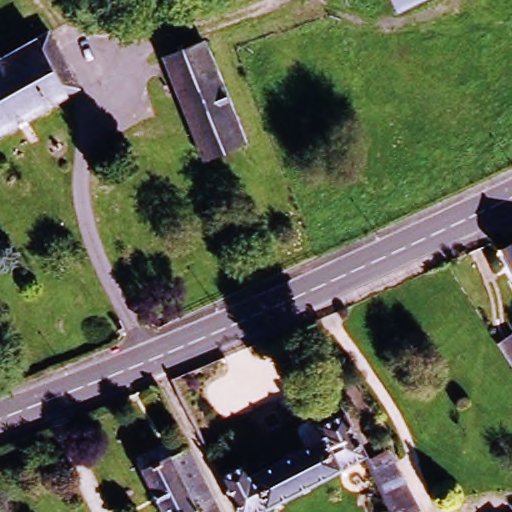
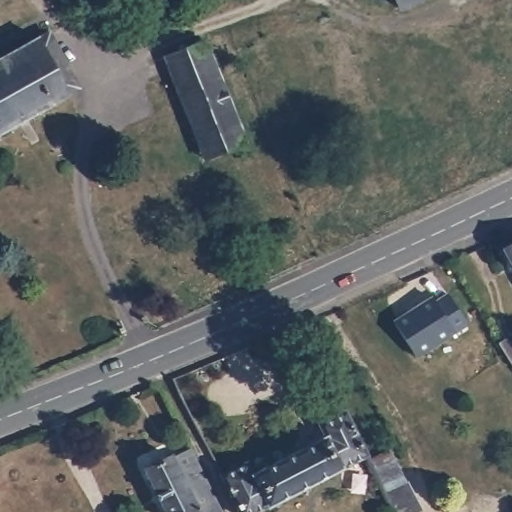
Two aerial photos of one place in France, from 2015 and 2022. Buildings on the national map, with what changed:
unchanged [(417,0),(398,9),(397,5),(395,0),(417,0)]
unchanged [(0,135),(0,61),(32,44),(43,37),(75,93),(63,99),(60,101),(0,135)]
unchanged [(160,62),(198,46),(212,81),(173,96),(160,62)]
unchanged [(212,81),(239,148),(200,164),(173,96),(212,81)]
unchanged [(512,243),(512,281),(495,253),(512,243)]
new [(432,298),(435,302),(447,294),(467,324),(453,332),(417,355),(395,321),(432,298)]
unchanged [(510,335),(512,337),(512,368),(511,369),(495,345),(510,335)]
unchanged [(250,462),(256,474),(330,436),(323,424),(347,412),(370,456),(261,512),(241,512),(223,476),(250,462)]
unchanged [(217,503),(199,512),(165,512),(143,469),(172,455),(172,457),(189,449),(217,503)]
unchanged [(418,512),(399,512),(387,489),(378,473),(372,460),(394,449),(400,462),(425,509),(418,512)]

